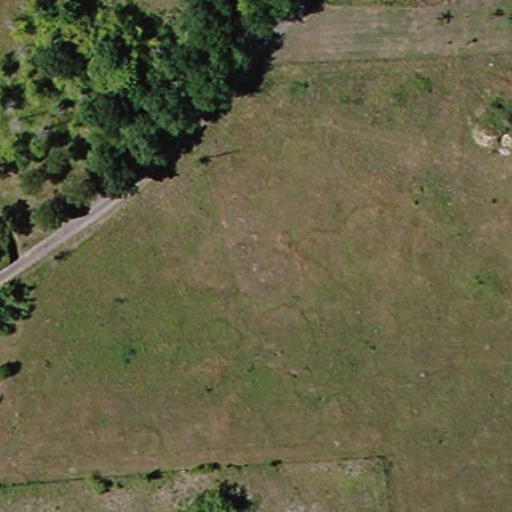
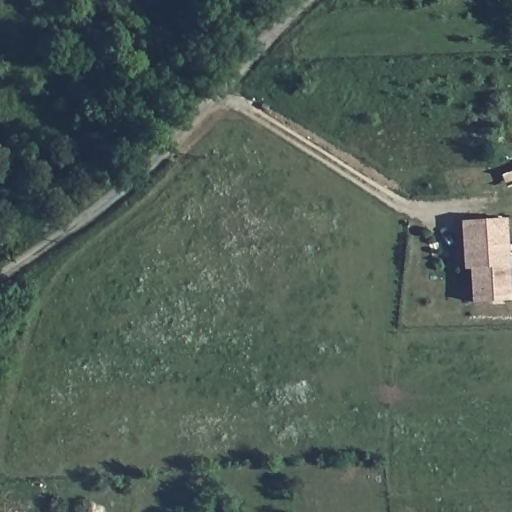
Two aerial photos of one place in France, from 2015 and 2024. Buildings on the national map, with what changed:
new [(470,304),(468,271),(462,271),(459,222),(506,219),(510,302),(470,304)]

